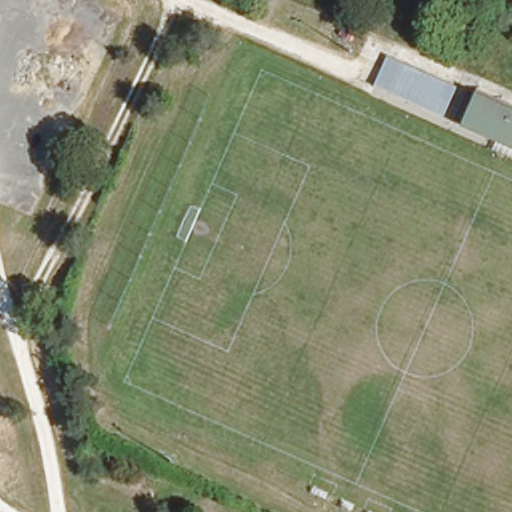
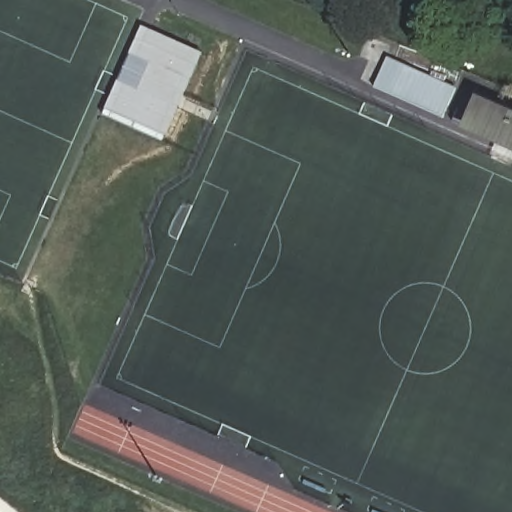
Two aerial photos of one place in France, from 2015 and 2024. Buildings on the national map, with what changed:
new [(136,56),(148,29),(195,50),(159,132),(111,111),(124,84),(136,56)]
unchanged [(450,120),(379,90),(391,60),(462,90),(450,120)]
unchanged [(466,126),(459,123),(470,95),(478,99),(512,113),(512,146),(466,126)]

